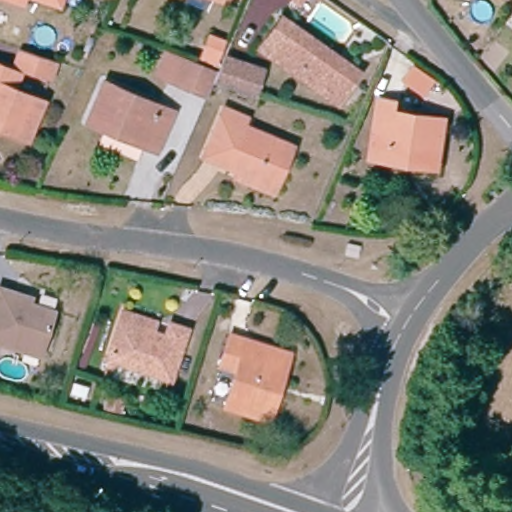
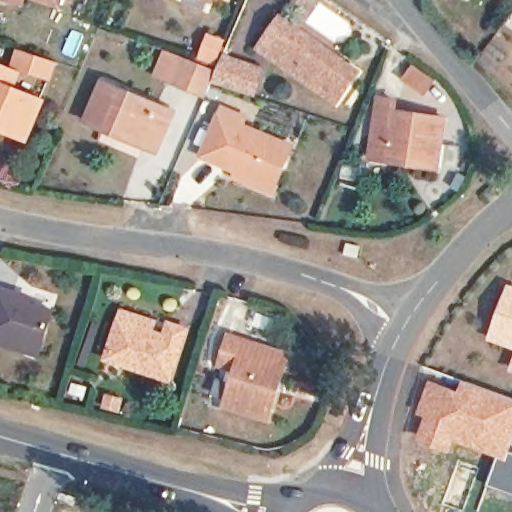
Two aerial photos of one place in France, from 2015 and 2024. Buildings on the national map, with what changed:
unchanged [(0,2),(0,0),(14,0),(12,6),(0,2)]
unchanged [(50,5),(36,0),(52,0),(50,5)]
unchanged [(200,0),(218,0),(215,6),(200,0)]
unchanged [(330,99),(272,61),(262,54),(282,23),(293,30),(350,67),(330,99)]
unchanged [(205,90),(168,77),(151,72),(161,47),(178,52),(194,58),(205,31),(227,40),(219,57),(253,67),(265,72),(257,95),(246,91),(209,79),(205,90)]
unchanged [(48,61),(41,77),(5,63),(11,47),(48,61)]
unchanged [(6,71),(2,85),(41,103),(22,147),(0,137),(0,68),(6,71)]
unchanged [(100,131),(82,124),(99,82),(166,110),(151,145),(149,151),(100,131)]
unchanged [(366,145),(371,99),(389,101),(388,110),(441,116),(434,169),(415,167),(364,161),(366,145)]
unchanged [(229,177),(234,167),(198,152),(213,116),(217,107),(242,117),(239,126),(285,145),(270,181),(265,192),(229,177)]
new [(512,284),(512,342),(492,334),(497,319),(511,283),(512,284)]
unchanged [(33,353),(0,342),(0,294),(15,298),(24,302),(22,307),(46,316),(33,353)]
unchanged [(159,328),(173,332),(158,382),(98,363),(111,323),(113,316),(145,326),(143,333),(156,338),(159,328)]
unchanged [(286,351),(266,415),(221,401),(230,372),(215,367),(226,332),(286,351)]
new [(418,415),(430,380),(458,392),(462,381),(512,399),(512,447),(511,450),(512,450),(512,495),(487,486),(498,458),(455,442),(451,453),(417,442),(425,417),(418,415)]

